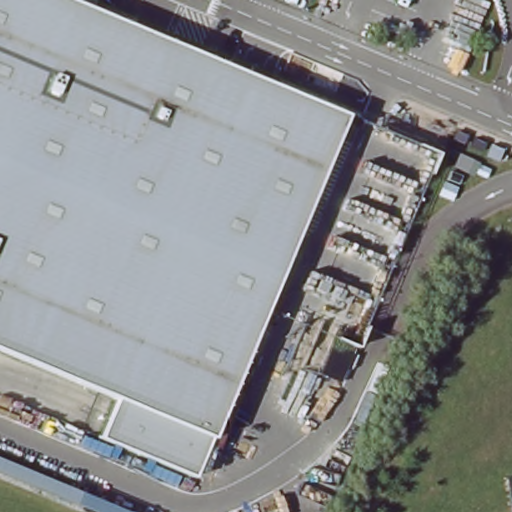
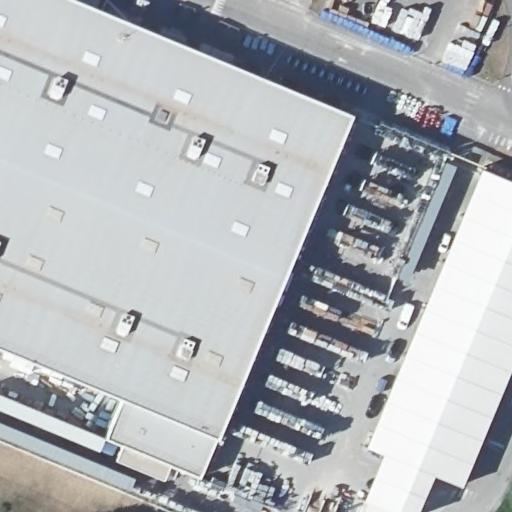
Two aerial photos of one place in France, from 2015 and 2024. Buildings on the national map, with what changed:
unchanged [(94,10),(93,9),(350,114),(201,478),(106,439),(122,400),(0,350),(0,0),(70,0),(94,10)]
unchanged [(87,2),(93,9),(94,10),(70,0),(85,0),(87,2)]
new [(419,37),(325,0),(434,0),(419,37)]
new [(380,452),(363,446),(478,168),(512,182),(512,357),(460,485),(430,471),(412,512),(358,512),(361,499),(380,452)]

